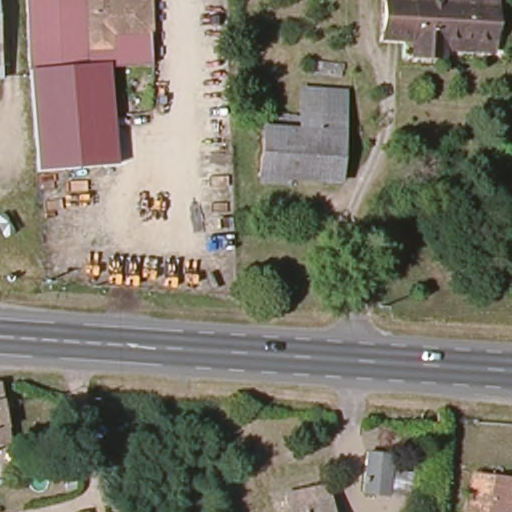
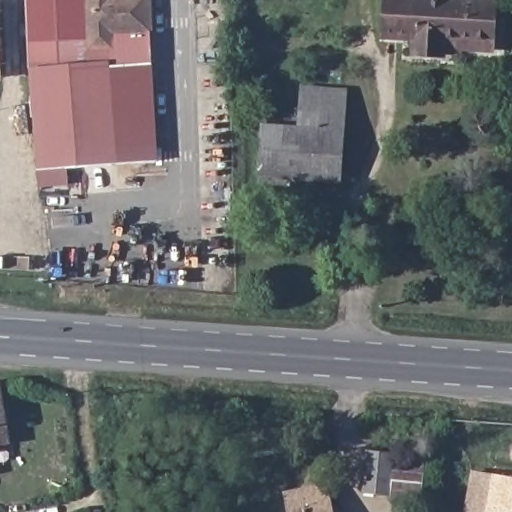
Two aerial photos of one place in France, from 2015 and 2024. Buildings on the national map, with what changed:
unchanged [(37,171),(30,70),(27,0),(32,0),(37,70),(110,66),(117,164),(37,171)]
unchanged [(151,0),(154,64),(37,70),(32,0),(151,0)]
unchanged [(450,57),(423,55),(423,39),(392,38),(395,0),(486,0),(503,1),(500,41),(500,50),(451,48),(450,57)]
new [(110,66),(154,64),(159,161),(117,164),(110,66)]
unchanged [(305,91),(346,95),(345,124),(303,119),(305,91)]
unchanged [(345,124),(338,186),(265,179),(272,115),(303,119),(345,124)]
unchanged [(11,444),(0,446),(0,389),(11,444)]
unchanged [(392,489),(366,488),(370,448),(393,449),(392,489)]
unchanged [(473,473),(512,477),(512,512),(467,512),(473,473)]
unchanged [(332,512),(293,512),(290,494),(328,488),(332,512)]

